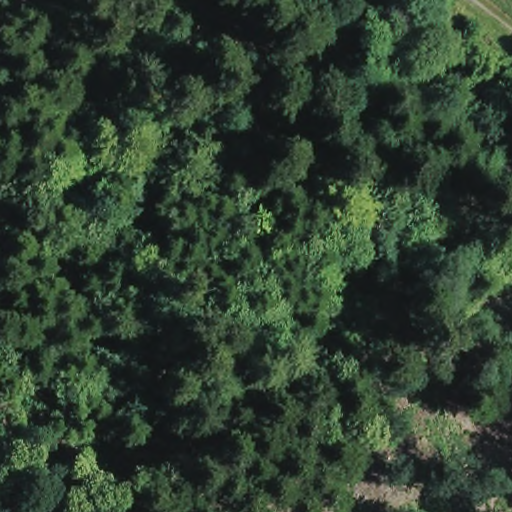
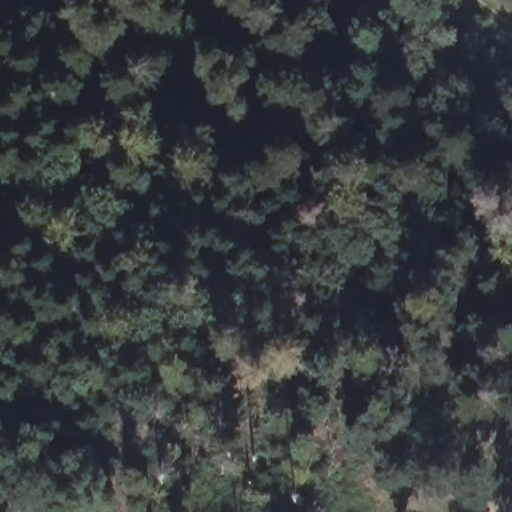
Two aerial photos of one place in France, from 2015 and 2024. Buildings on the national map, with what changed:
[]

